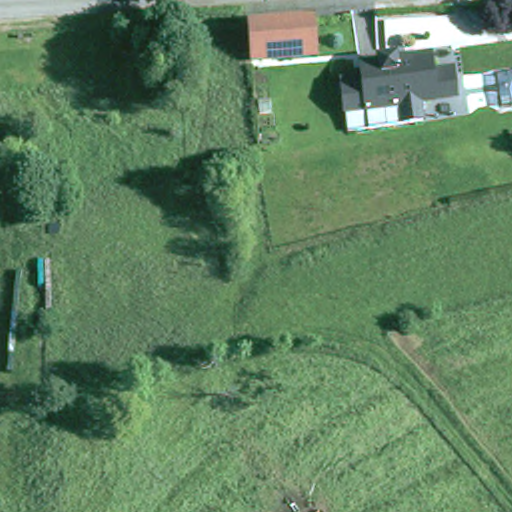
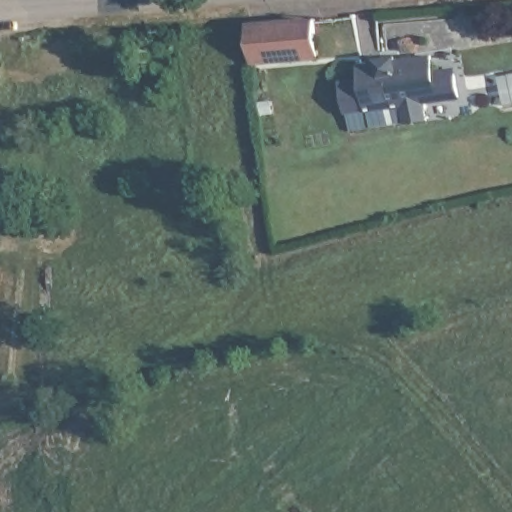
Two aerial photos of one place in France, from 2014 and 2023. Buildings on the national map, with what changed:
unchanged [(299,54),(236,60),(233,21),(245,21),(296,16),(299,54)]
unchanged [(461,71),(464,100),(428,104),(431,122),(354,130),(349,83),(371,80),(369,66),(386,64),(385,60),(403,58),(404,65),(439,60),(439,66),(439,74),(461,71)]

